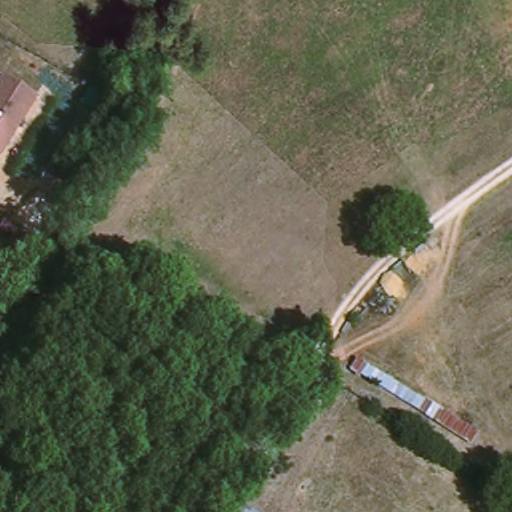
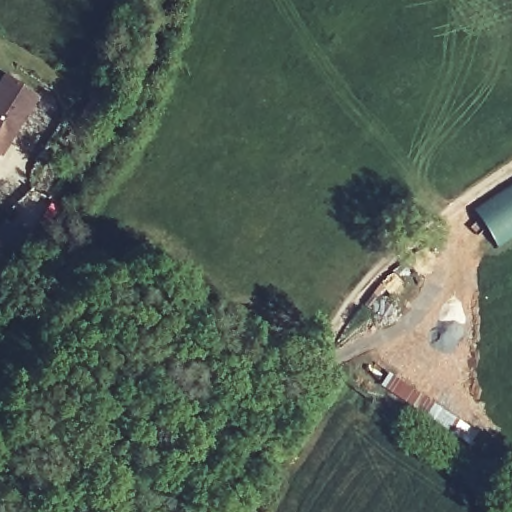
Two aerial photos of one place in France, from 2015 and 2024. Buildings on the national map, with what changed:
unchanged [(0,155),(0,80),(4,74),(40,98),(2,156),(0,155)]
new [(471,209),(512,182),(512,242),(497,251),(471,209)]
unchanged [(477,449),(357,372),(362,363),(483,439),(477,449)]

